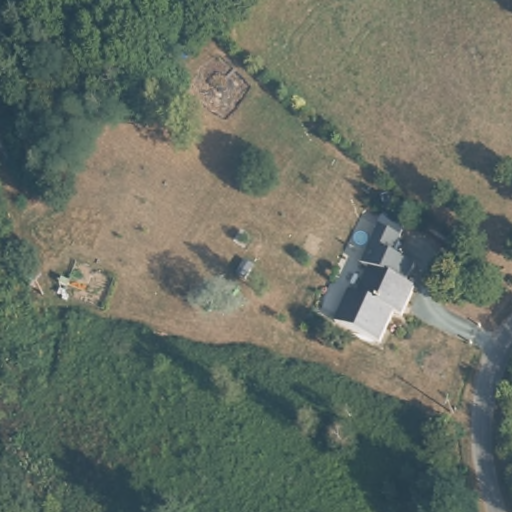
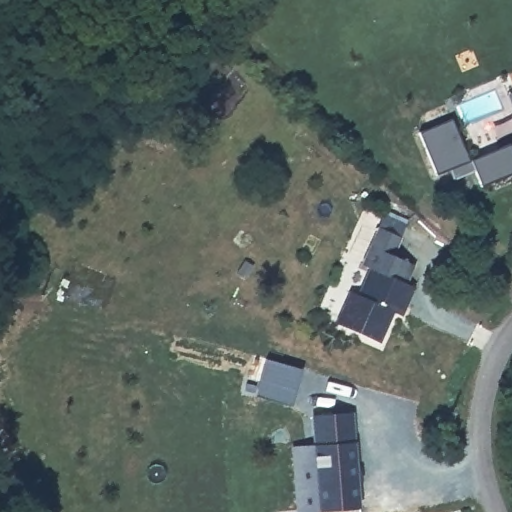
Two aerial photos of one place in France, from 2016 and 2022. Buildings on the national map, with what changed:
new [(452,119),(470,160),(510,144),(512,149),(512,173),(480,186),(475,172),(453,181),(448,170),(435,175),(418,133),(452,119)]
unchanged [(352,283),(360,288),(374,265),(367,260),(393,223),(411,234),(400,252),(420,266),(409,286),(415,291),(403,313),(395,309),(376,339),(335,313),(352,283)]
new [(266,359),(302,368),(290,405),(255,396),(266,359)]
new [(311,416),(352,412),(360,508),(314,512),(295,512),(290,446),(314,444),(311,416)]

